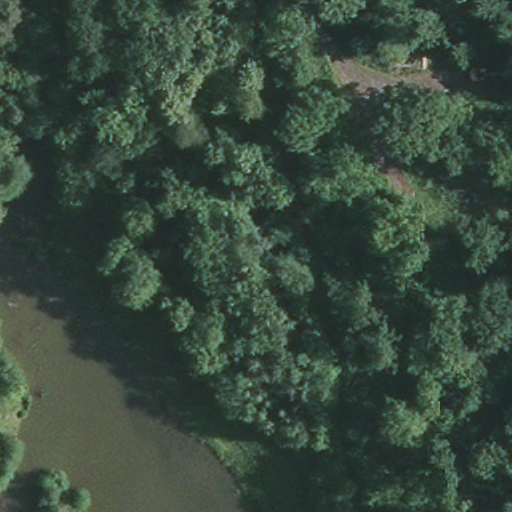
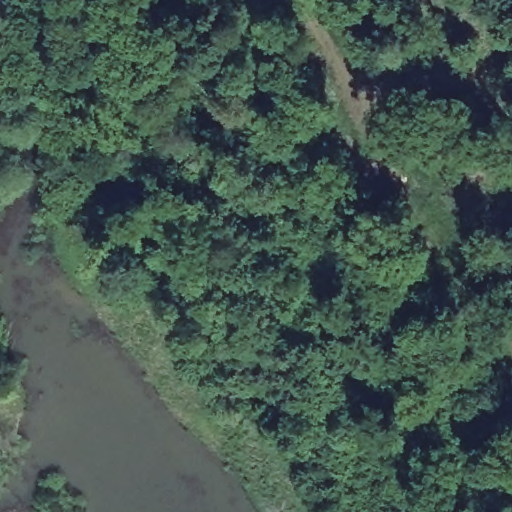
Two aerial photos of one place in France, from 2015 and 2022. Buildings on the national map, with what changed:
[]

